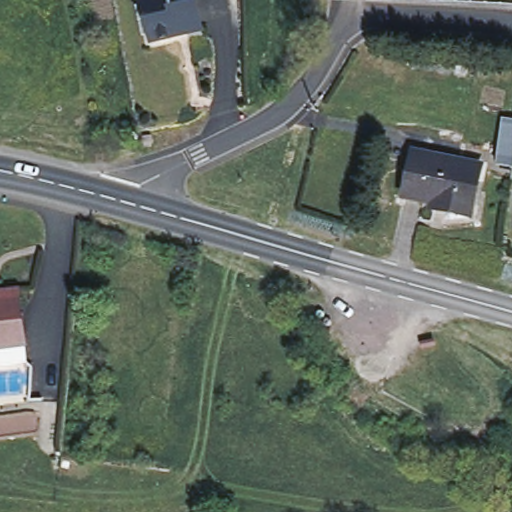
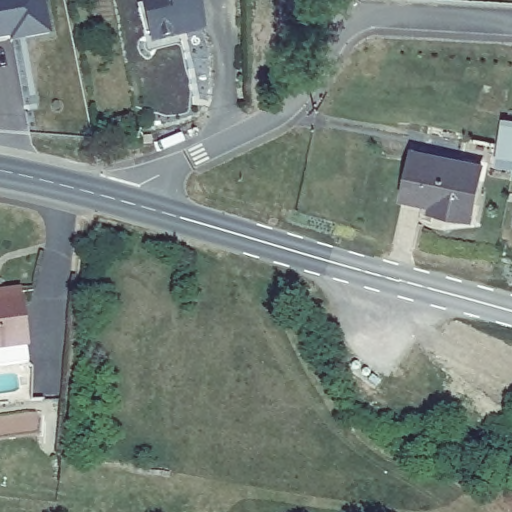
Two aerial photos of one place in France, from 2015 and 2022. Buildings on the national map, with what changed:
new [(9,44),(9,40),(0,41),(0,0),(44,0),(51,36),(9,44)]
unchanged [(201,30),(149,43),(138,0),(194,0),(200,23),(201,30)]
unchanged [(512,119),(512,168),(497,165),(505,118),(512,119)]
unchanged [(481,166),(471,217),(432,209),(433,202),(404,197),(412,152),(481,166)]
unchanged [(0,294),(17,291),(25,346),(27,363),(0,367),(0,294)]

